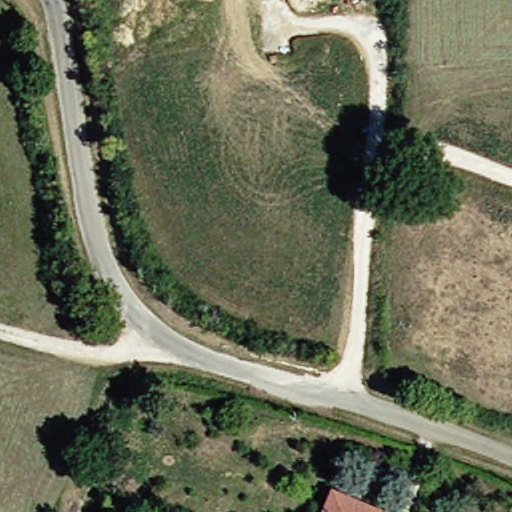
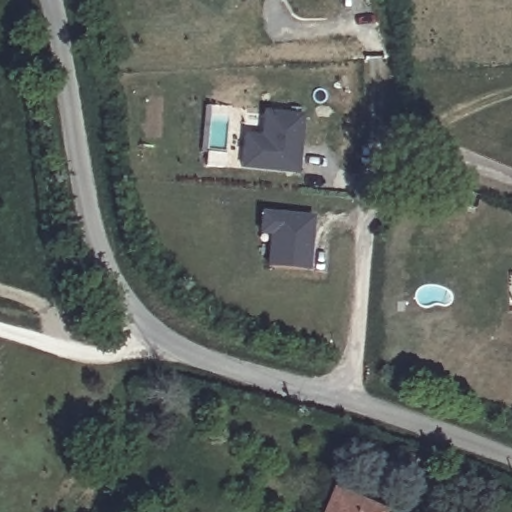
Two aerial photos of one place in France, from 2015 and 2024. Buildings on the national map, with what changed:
new [(292,175),(236,170),(238,138),(255,139),(257,114),(296,117),(294,145),(293,153),(292,175)]
new [(309,270),(273,267),(275,234),(264,233),(266,214),(317,217),(314,260),(313,270),(309,270)]
unchanged [(342,488),(391,509),(390,512),(331,512),(342,488)]

